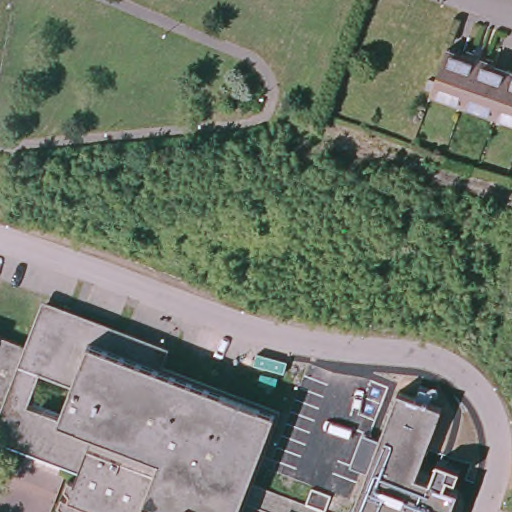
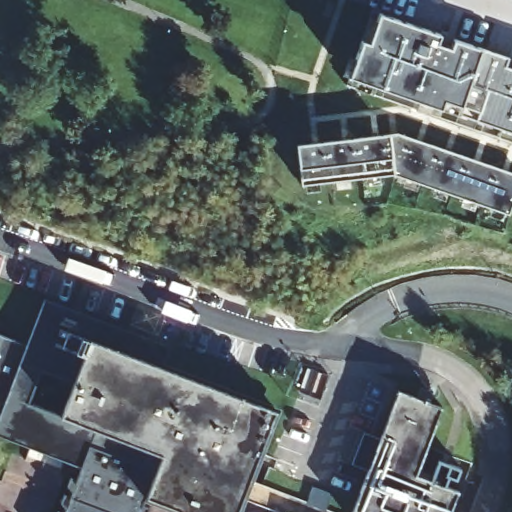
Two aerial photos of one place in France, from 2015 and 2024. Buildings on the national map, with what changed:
new [(426,40),(422,49),(440,52),(441,45),(495,63),(493,69),(509,77),(512,69),(512,145),(341,89),(362,18),(426,40)]
demolished [(512,117),(430,89),(445,49),(512,72),(512,117)]
new [(386,140),(511,184),(496,221),(383,179),(290,192),(286,151),(386,140)]
unchanged [(242,496),(237,512),(182,512),(153,502),(149,512),(59,512),(76,466),(0,438),(0,336),(22,343),(36,304),(160,347),(153,365),(273,407),(248,478),(339,512),(289,512),(242,496)]
unchanged [(440,397),(416,466),(460,482),(449,512),(349,512),(395,381),(440,397)]
unchanged [(289,512),(286,512),(286,511),(289,512)]

